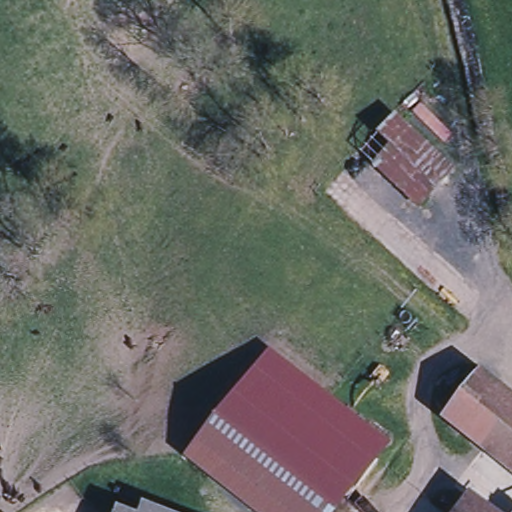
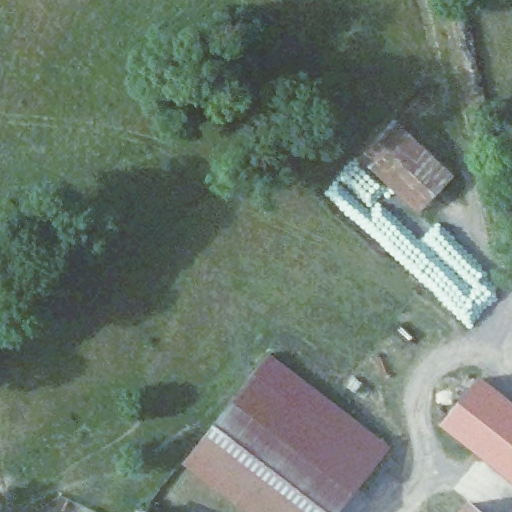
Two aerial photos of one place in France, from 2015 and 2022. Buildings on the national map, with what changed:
unchanged [(394,117),(456,168),(424,207),(362,156),(394,117)]
unchanged [(384,454),(341,512),(262,512),(187,458),(258,361),(384,454)]
unchanged [(512,409),(512,478),(442,423),(476,380),(512,409)]
unchanged [(472,506),(479,512),(467,512),(472,506)]

